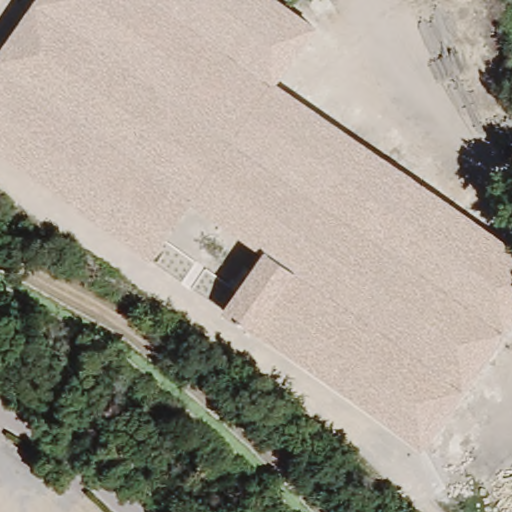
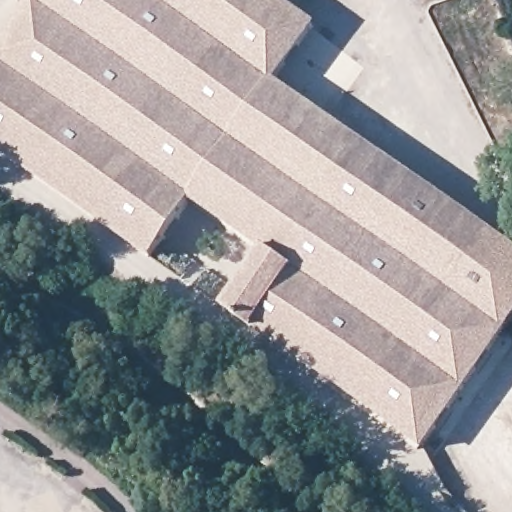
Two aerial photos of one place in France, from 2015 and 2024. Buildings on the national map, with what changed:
unchanged [(278,0),(325,31),(291,85),(395,159),(427,113),(461,135),(448,158),(468,171),(447,195),(512,241),(512,331),(510,333),(425,449),(259,333),(299,275),(266,254),(196,201),(153,259),(0,152),(0,40),(29,0),(278,0)]
unchanged [(266,254),(299,275),(259,333),(226,310),(266,254)]

